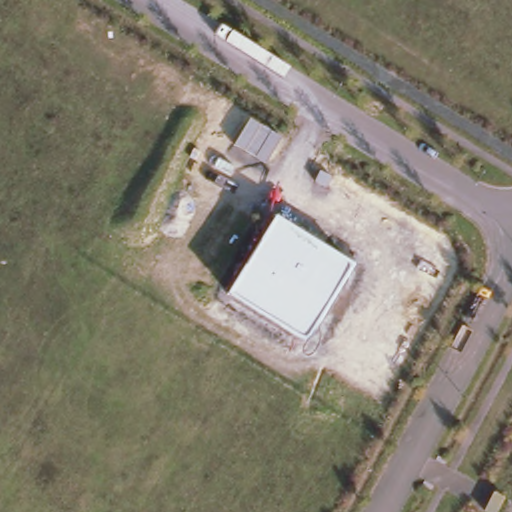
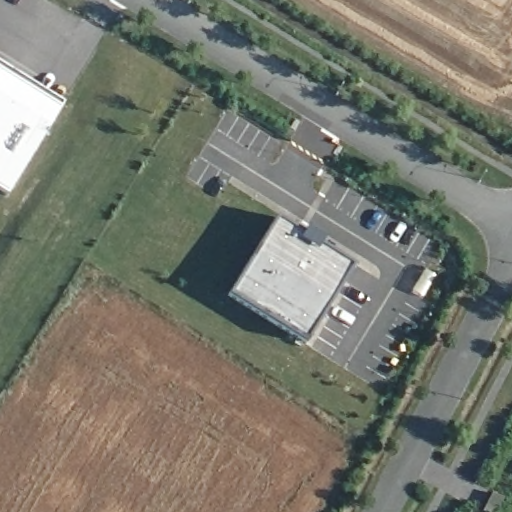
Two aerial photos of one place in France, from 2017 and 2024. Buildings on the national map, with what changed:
new [(60,108),(0,71),(0,62),(64,101),(60,108)]
new [(6,195),(0,191),(0,71),(59,108),(6,195)]
unchanged [(227,295),(275,215),(353,264),(304,342),(227,295)]
new [(427,270),(435,275),(422,297),(413,291),(427,270)]
unchanged [(502,497),(494,512),(484,512),(482,511),(492,491),(502,497)]

